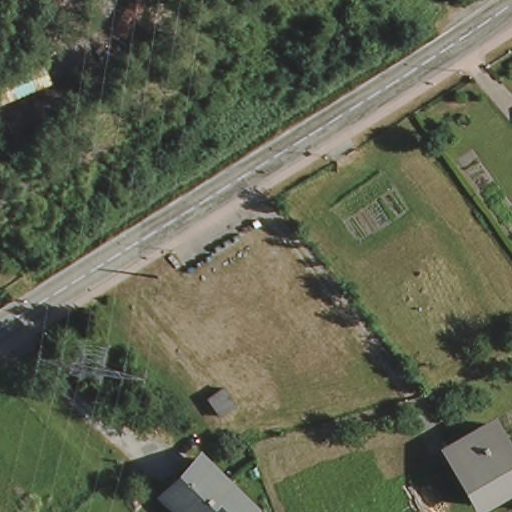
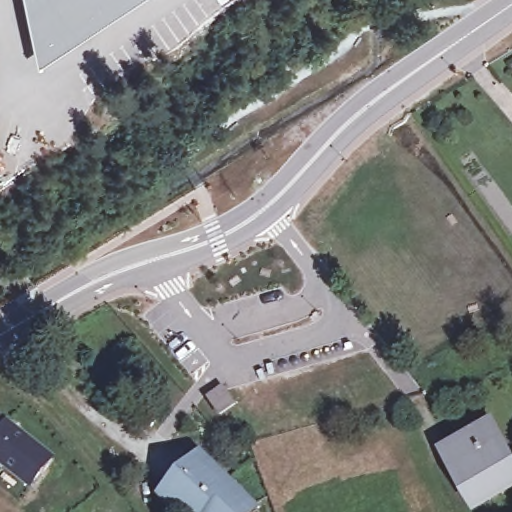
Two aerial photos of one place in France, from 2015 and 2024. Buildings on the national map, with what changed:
new [(19,0),(138,0),(34,69),(19,0)]
demolished [(0,104),(0,74),(43,57),(55,95),(3,111),(0,104)]
unchanged [(216,374),(226,385),(213,396),(205,385),(216,374)]
new [(56,462),(36,487),(0,458),(0,418),(56,462)]
unchanged [(512,450),(512,484),(480,501),(451,446),(498,423),(512,450)]
unchanged [(197,450),(208,461),(242,498),(230,512),(203,512),(191,501),(181,511),(170,499),(159,487),(163,481),(188,455),(197,450)]

